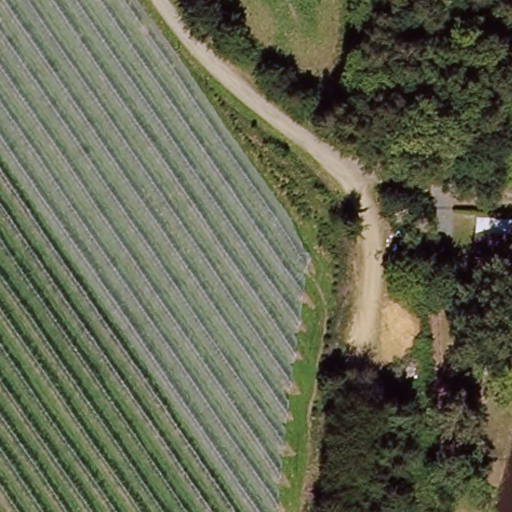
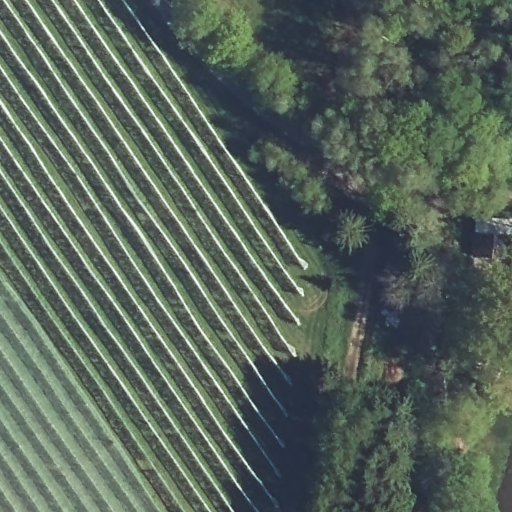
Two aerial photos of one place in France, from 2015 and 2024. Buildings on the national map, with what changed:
unchanged [(472,246),(472,226),(505,227),(505,247),(472,246)]
unchanged [(489,282),(495,269),(510,275),(505,287),(489,282)]

